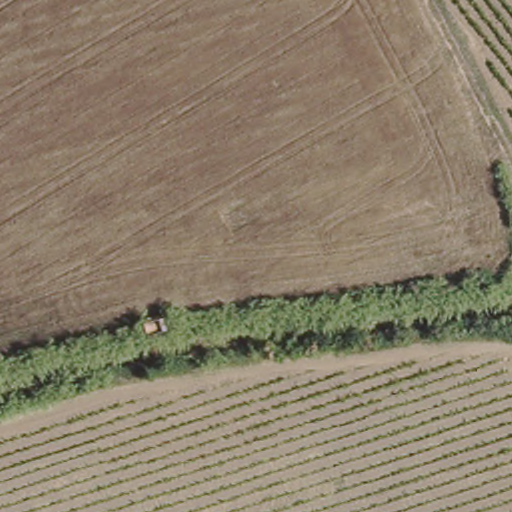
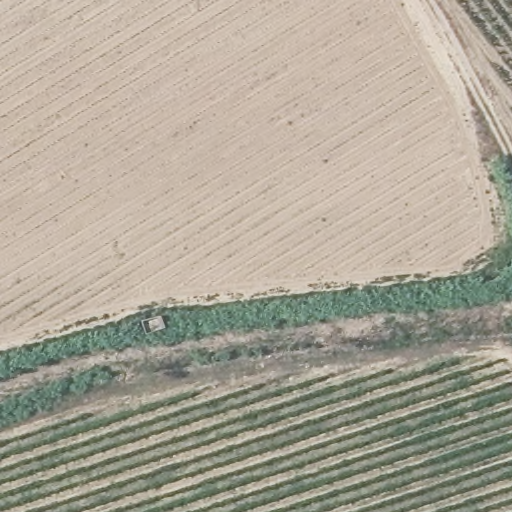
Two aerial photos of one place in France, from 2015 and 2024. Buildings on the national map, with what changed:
unchanged [(163,329),(144,336),(140,325),(162,318),(163,329)]

